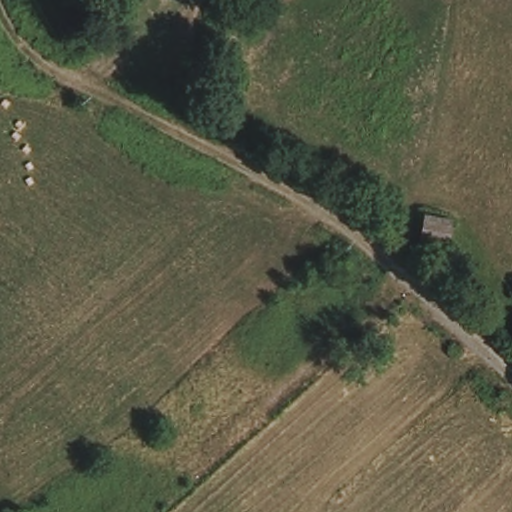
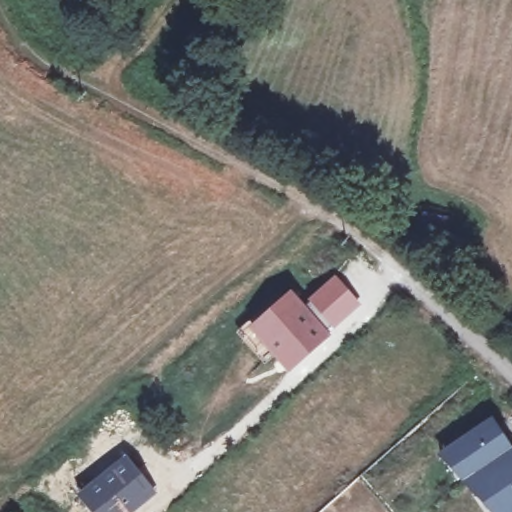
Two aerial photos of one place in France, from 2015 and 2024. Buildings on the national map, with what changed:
unchanged [(419,216),(445,222),(439,247),(413,241),(419,216)]
new [(288,294),(326,337),(293,369),(253,324),(288,294)]
new [(512,448),(512,512),(491,512),(439,454),(492,420),(512,448)]
new [(157,493),(134,512),(91,512),(76,493),(125,453),(157,493)]

